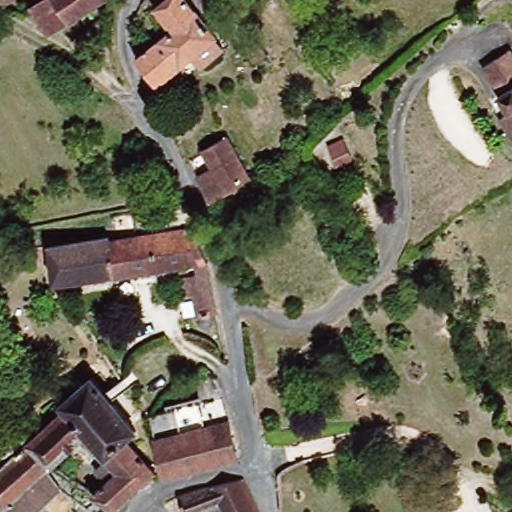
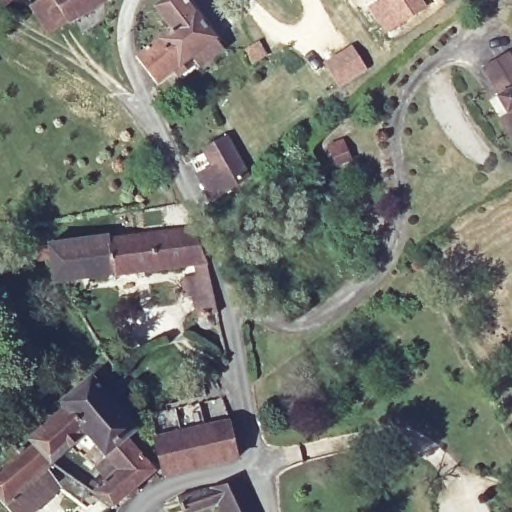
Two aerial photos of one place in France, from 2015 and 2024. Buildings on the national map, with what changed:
unchanged [(9,0),(0,7),(0,0),(9,0)]
unchanged [(53,0),(67,24),(44,37),(23,1),(25,0),(53,0)]
unchanged [(53,0),(108,0),(67,24),(53,0)]
unchanged [(163,29),(146,0),(186,0),(210,38),(212,37),(220,49),(199,65),(191,53),(184,59),(163,29)]
new [(424,0),(428,6),(387,33),(367,7),(375,0),(424,0)]
unchanged [(300,37),(282,47),(270,26),(288,16),(300,37)]
unchanged [(157,83),(134,54),(163,29),(184,59),(157,83)]
new [(352,44),(368,69),(339,87),(322,63),(352,44)]
unchanged [(512,71),(512,132),(500,116),(493,121),(477,98),(483,94),(470,74),(499,53),(512,71)]
unchanged [(228,132),(255,179),(212,202),(187,156),(228,132)]
unchanged [(189,306),(182,287),(189,285),(187,267),(66,282),(50,286),(47,250),(20,251),(19,239),(45,237),(110,234),(110,244),(142,240),(190,238),(218,306),(227,338),(209,334),(197,306),(189,306)]
unchanged [(97,452),(78,432),(58,406),(52,395),(87,371),(128,428),(122,437),(97,452)]
unchanged [(78,432),(53,456),(25,436),(58,406),(78,432)]
unchanged [(150,437),(226,419),(234,460),(159,477),(150,437)]
unchanged [(83,507),(57,491),(32,512),(10,512),(0,501),(0,460),(15,447),(25,436),(53,456),(51,459),(57,463),(95,493),(83,507)]
unchanged [(115,508),(95,493),(57,463),(72,452),(97,481),(112,467),(97,452),(122,437),(152,468),(138,480),(115,508)]
unchanged [(215,511),(212,512),(156,512),(152,501),(231,477),(249,512),(215,512),(215,511)]

